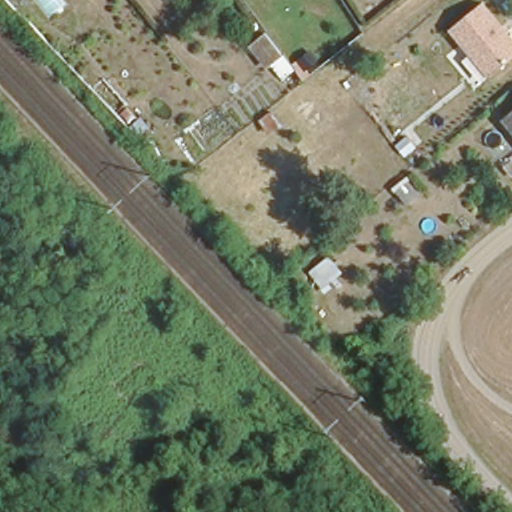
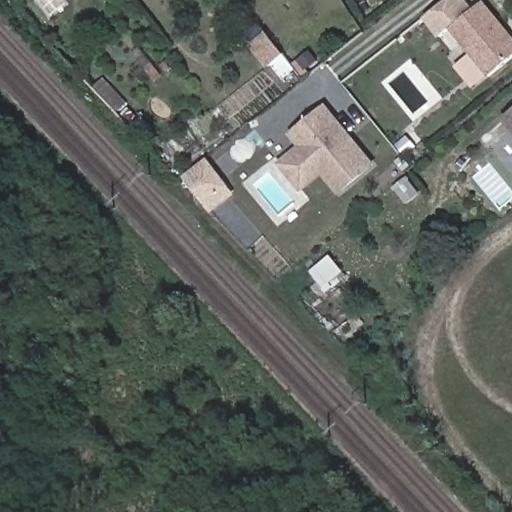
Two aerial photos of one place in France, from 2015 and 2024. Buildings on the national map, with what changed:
unchanged [(512,58),(490,77),(450,29),(485,2),(512,35),(512,58)]
demolished [(333,115),(311,135),(285,104),(310,82),(333,115)]
new [(376,166),(339,197),(321,175),(301,194),(277,165),(298,147),(287,135),(325,105),(376,166)]
unchanged [(512,107),(512,137),(497,119),(512,107)]
new [(234,195),(210,214),(182,177),(207,159),(229,187),(234,195)]

